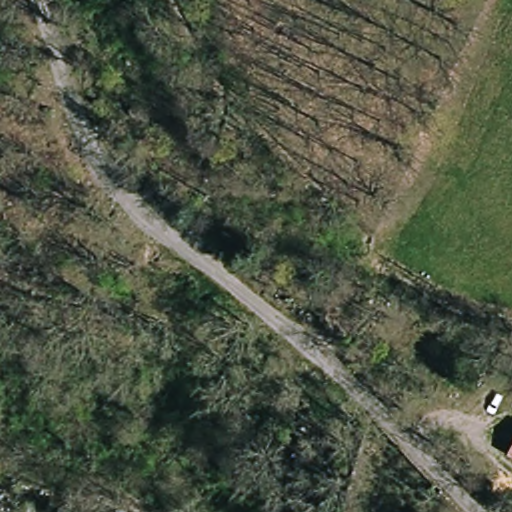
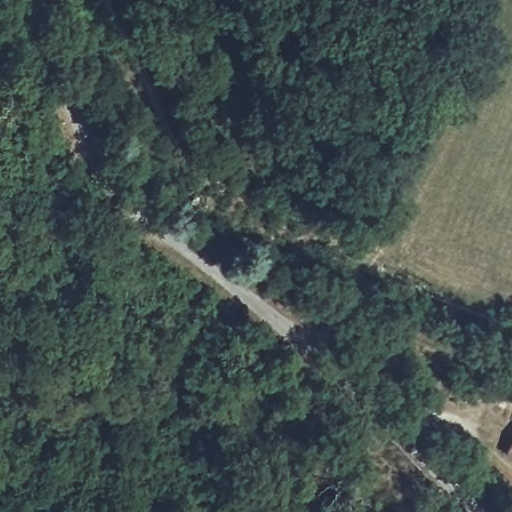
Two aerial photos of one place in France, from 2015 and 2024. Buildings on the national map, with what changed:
unchanged [(512,443),(512,458),(506,455),(512,443)]

